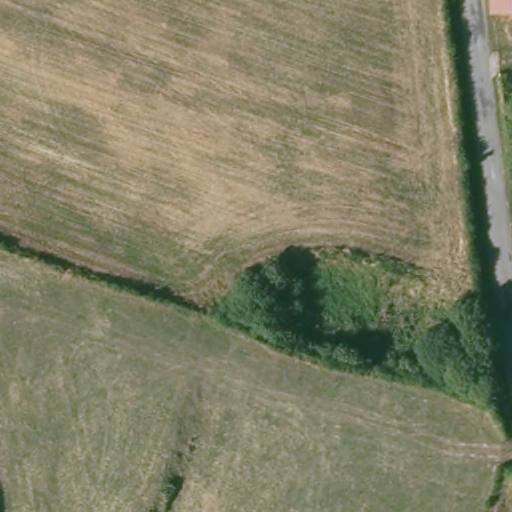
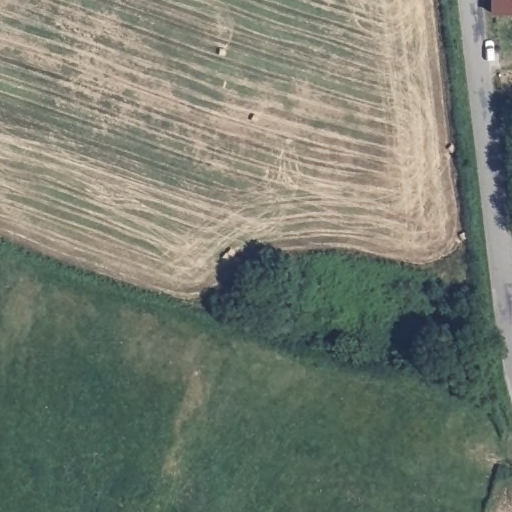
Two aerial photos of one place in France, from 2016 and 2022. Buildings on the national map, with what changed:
unchanged [(500,9),(500,0),(512,0),(512,9),(500,9)]

